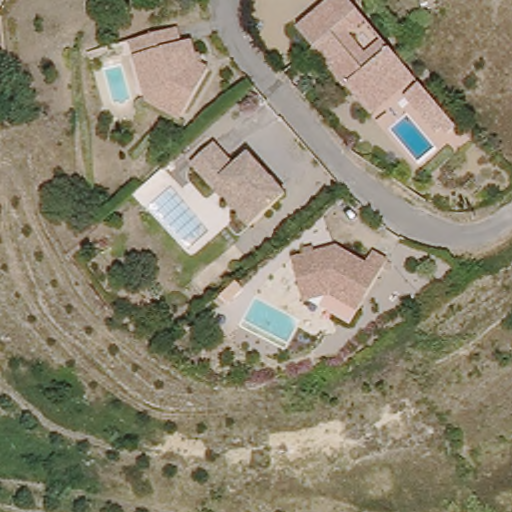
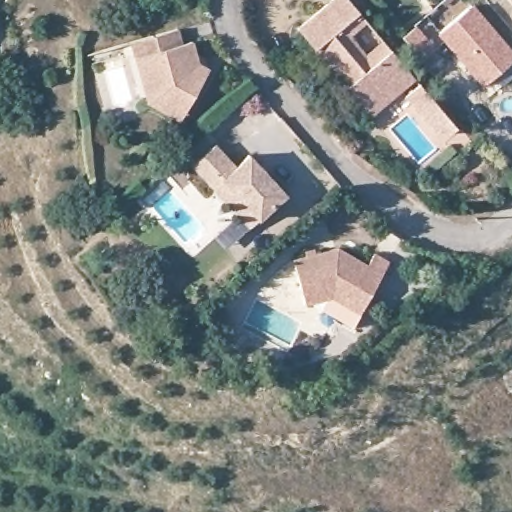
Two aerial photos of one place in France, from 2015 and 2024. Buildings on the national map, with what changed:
unchanged [(404,55),(420,75),(375,111),(309,30),(346,0),(360,0),(377,21),(396,45),(404,55)]
new [(512,0),(512,2),(510,0),(512,0)]
new [(512,62),(483,89),(435,35),(472,4),(512,49),(512,62)]
unchanged [(150,108),(138,63),(135,46),(182,35),(185,51),(195,48),(200,64),(203,63),(206,73),(212,76),(186,119),(181,127),(150,108)]
unchanged [(461,126),(447,138),(417,100),(423,95),(418,88),(426,82),(461,126)]
unchanged [(208,185),(194,171),(215,149),(237,170),(250,157),(289,195),(263,221),(255,230),(208,185)]
unchanged [(357,323),(325,300),(300,306),(287,259),(332,241),(370,263),(378,247),(393,260),(357,323)]

